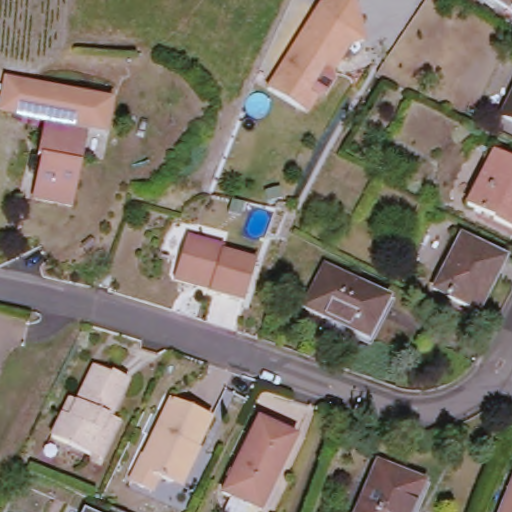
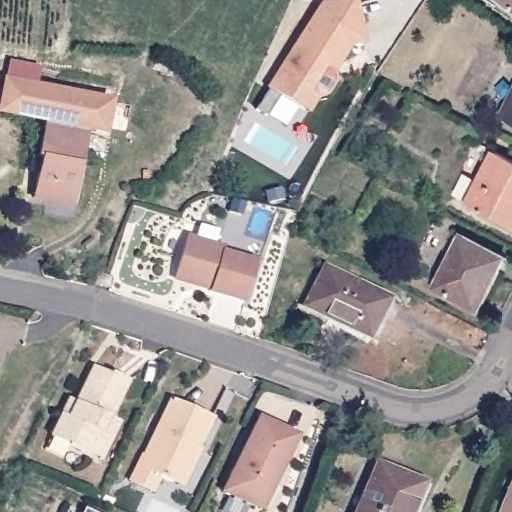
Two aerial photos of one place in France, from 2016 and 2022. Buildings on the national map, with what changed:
unchanged [(298,107),(268,88),(322,5),(343,0),(355,0),(364,42),(350,45),(333,71),(325,66),(308,92),(317,97),(307,112),(298,107)]
unchanged [(512,0),(512,10),(499,0),(512,0)]
unchanged [(32,156),(37,157),(45,119),(35,117),(0,110),(2,99),(7,80),(36,86),(111,101),(107,120),(106,127),(88,123),(87,132),(87,133),(72,206),(33,198),(38,173),(30,171),(32,156)]
unchanged [(512,96),(512,121),(502,116),(512,96)]
unchanged [(512,161),(512,228),(468,206),(495,152),(512,161)]
unchanged [(177,272),(188,235),(225,247),(223,252),(257,262),(244,302),(209,291),(210,290),(175,278),(177,272)]
unchanged [(462,236),(506,258),(485,300),(480,297),(473,310),(435,290),(462,236)]
unchanged [(305,306),(325,266),(390,299),(369,339),(305,306)]
unchanged [(108,287),(102,286),(95,283),(97,273),(105,275),(111,277),(108,287)]
unchanged [(100,458),(90,453),(52,435),(63,412),(71,397),(77,400),(95,365),(112,373),(113,371),(130,379),(111,417),(113,418),(119,421),(100,458)]
unchanged [(132,482),(143,460),(172,398),(212,417),(197,447),(195,446),(190,458),(192,465),(185,477),(172,482),(158,476),(151,492),(132,482)]
unchanged [(251,506),(223,492),(260,417),(298,436),(272,488),(260,511),(251,506)]
unchanged [(378,463),(425,483),(412,512),(357,512),(378,463)]
unchanged [(512,490),(512,512),(504,512),(512,490)]

